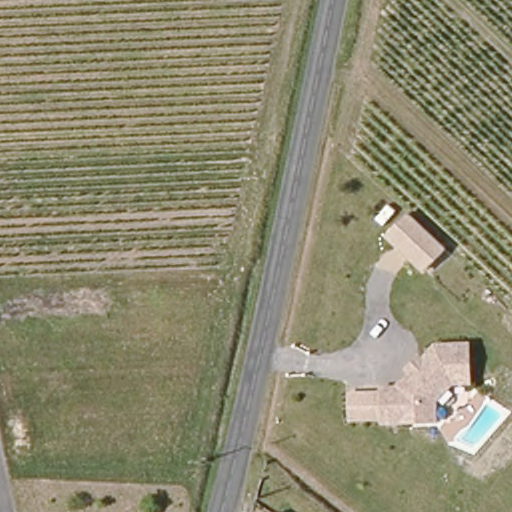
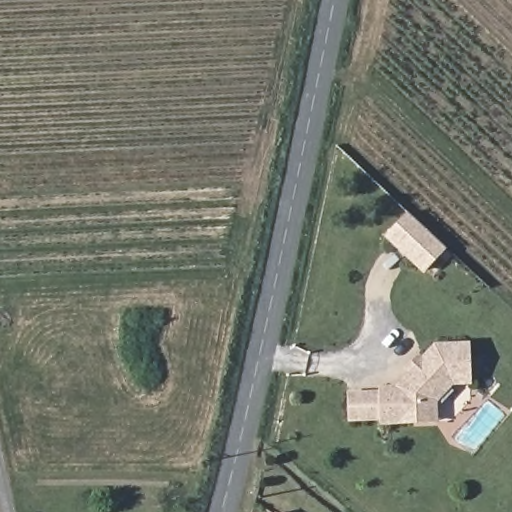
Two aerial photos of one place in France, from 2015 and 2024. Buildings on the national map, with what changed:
unchanged [(442,246),(420,269),(384,235),(406,212),(442,245),(442,246)]
unchanged [(417,423),(381,425),(381,421),(348,422),(347,393),(379,394),(379,389),(393,389),(409,373),(405,370),(413,362),(416,359),(419,363),(433,348),(467,346),(468,384),(451,385),(446,391),(433,403),(435,423),(417,423)]

